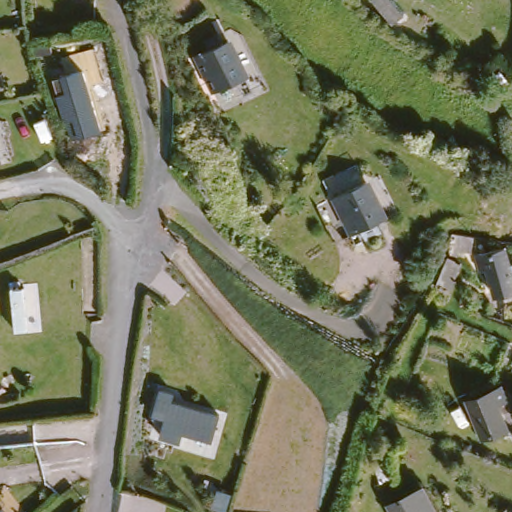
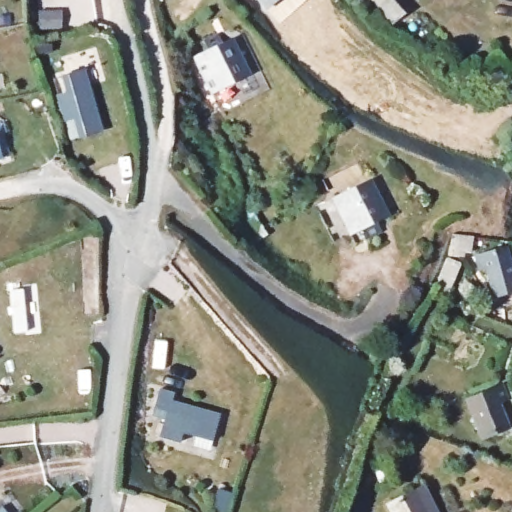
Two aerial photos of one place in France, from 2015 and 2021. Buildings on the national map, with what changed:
unchanged [(409,7),(400,21),(372,0),(399,0),(409,7)]
unchanged [(241,80),(207,96),(185,50),(192,46),(187,37),(204,30),(208,38),(218,34),(241,80)]
unchanged [(507,84),(497,78),(505,64),(512,69),(512,74),(507,84)]
unchanged [(70,138),(53,76),(85,67),(102,130),(70,138)]
unchanged [(0,158),(0,154),(1,158),(0,158)]
unchanged [(367,191),(380,216),(372,220),(376,228),(361,237),(356,228),(346,233),(323,187),(336,180),(357,170),(367,191)]
unchanged [(437,251),(444,235),(445,231),(473,238),(468,254),(451,249),(448,255),(436,283),(424,278),(437,251)]
unchanged [(495,242),(502,261),(512,258),(512,260),(512,282),(491,288),(482,262),(478,264),(472,249),(495,242)]
unchanged [(453,401),(488,386),(496,402),(485,407),(495,431),(472,441),(453,401)]
unchanged [(184,434),(181,444),(160,437),(165,419),(152,416),(161,387),(177,391),(175,399),(221,412),(214,441),(184,434)]
unchanged [(428,512),(392,512),(386,501),(413,485),(428,512)]
unchanged [(8,512),(0,512),(0,507),(2,505),(8,512)]

